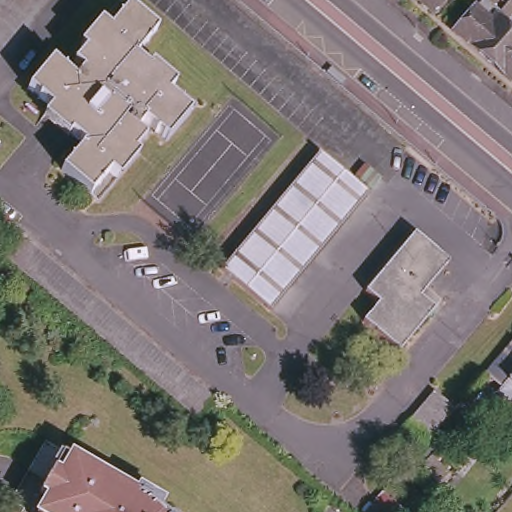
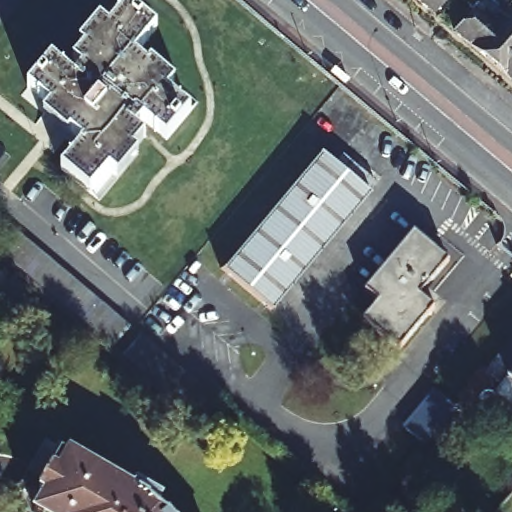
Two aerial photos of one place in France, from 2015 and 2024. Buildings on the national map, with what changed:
unchanged [(414,0),(431,0),(424,8),(414,0)]
unchanged [(482,58),(449,31),(469,8),(475,0),(483,0),(495,10),(489,16),(505,30),(512,36),(512,83),(482,58)]
unchanged [(510,0),(512,0),(512,2),(510,0)]
unchanged [(160,26),(137,52),(150,62),(151,61),(175,81),(169,89),(191,108),(166,136),(145,117),(137,126),(147,134),(135,148),(137,150),(116,174),(109,169),(90,190),(62,166),(84,139),(72,129),(70,130),(46,110),(52,102),(30,83),(54,55),(78,75),(85,65),(74,57),(85,44),(82,42),(105,18),(112,24),(132,1),(160,26)]
unchanged [(370,195),(270,311),(220,268),(321,153),(370,195)]
unchanged [(192,422),(0,264),(0,219),(213,396),(192,422)]
unchanged [(443,253),(445,251),(450,255),(448,257),(450,259),(421,293),(435,305),(398,348),(362,318),(377,298),(365,287),(415,230),(443,253)]
unchanged [(494,372),(495,371),(512,351),(512,387),(494,372)]
unchanged [(405,427),(419,411),(437,389),(459,407),(446,422),(441,428),(426,445),(405,427)]
unchanged [(508,393),(512,389),(512,396),(508,393)]
unchanged [(157,510),(159,512),(32,512),(17,502),(57,442),(159,508),(157,510)]
unchanged [(404,512),(394,512),(399,507),(404,512)]

